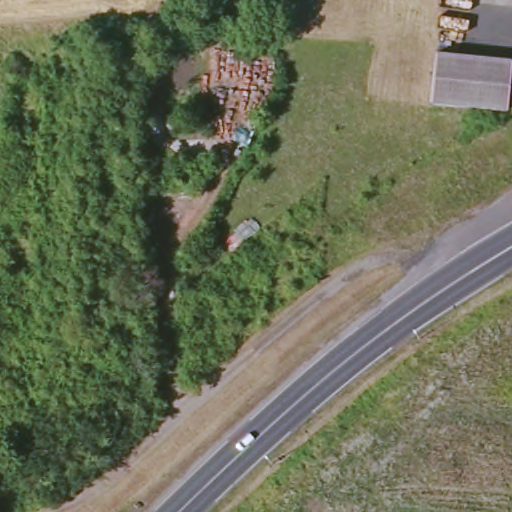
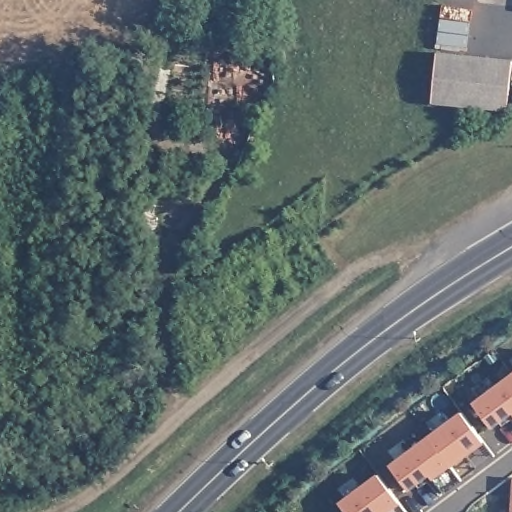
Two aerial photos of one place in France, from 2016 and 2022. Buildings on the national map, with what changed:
unchanged [(512,103),(512,109),(462,105),(433,101),(439,54),(512,60),(512,103)]
new [(472,399),(512,371),(512,416),(494,427),(472,399)]
new [(441,491),(430,475),(408,490),(389,463),(462,410),(485,442),(452,467),(460,479),(441,491)]
new [(378,472),(406,512),(377,512),(349,512),(340,501),(378,472)]

